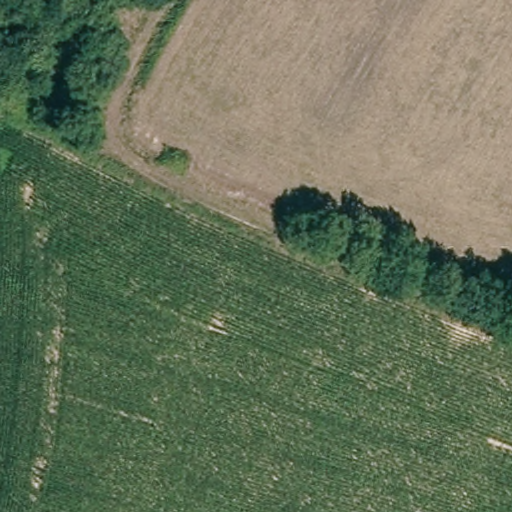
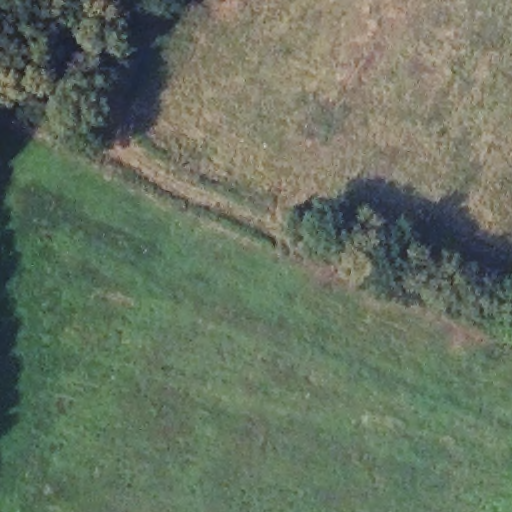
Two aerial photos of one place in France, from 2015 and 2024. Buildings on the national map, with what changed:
[]

